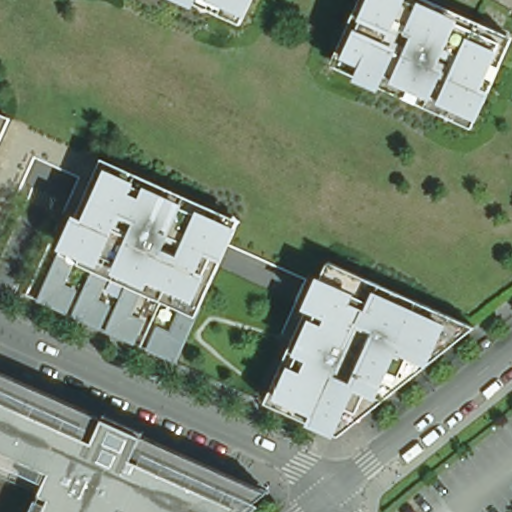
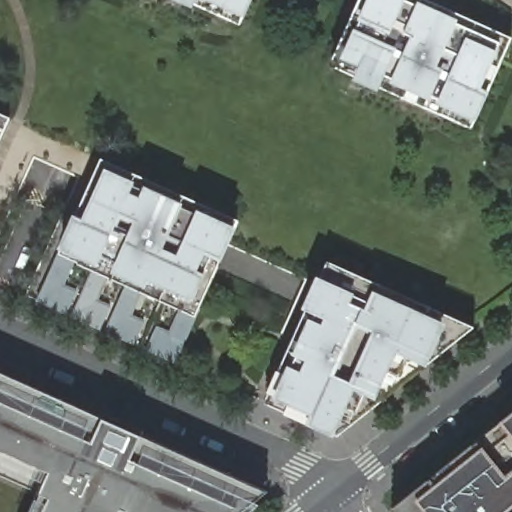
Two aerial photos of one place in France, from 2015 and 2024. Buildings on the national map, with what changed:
unchanged [(240,25),(185,0),(251,0),(240,25)]
unchanged [(512,37),(512,39),(505,54),(497,71),(471,129),(330,65),(359,0),(429,0),(512,37)]
unchanged [(0,143),(0,111),(11,116),(0,143)]
unchanged [(172,364),(142,351),(154,323),(169,330),(178,305),(142,290),(131,314),(144,320),(134,344),(105,332),(125,285),(107,276),(97,300),(110,307),(100,327),(70,315),(90,269),(74,262),(63,286),(76,292),(66,312),(34,298),(57,249),(74,214),(98,156),(236,217),(172,364)]
unchanged [(336,436),(332,435),(307,423),(262,407),(271,398),(310,313),(301,310),(317,276),(325,260),(473,326),(336,436)]
unchanged [(37,512),(52,481),(0,457),(0,376),(270,494),(247,512),(37,512)]
new [(512,413),(512,512),(393,512),(390,508),(512,413)]

